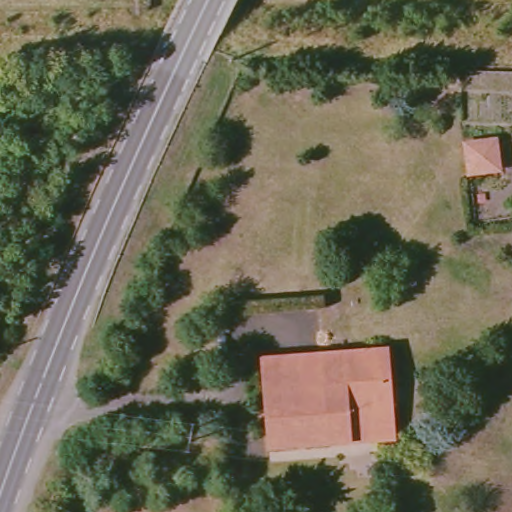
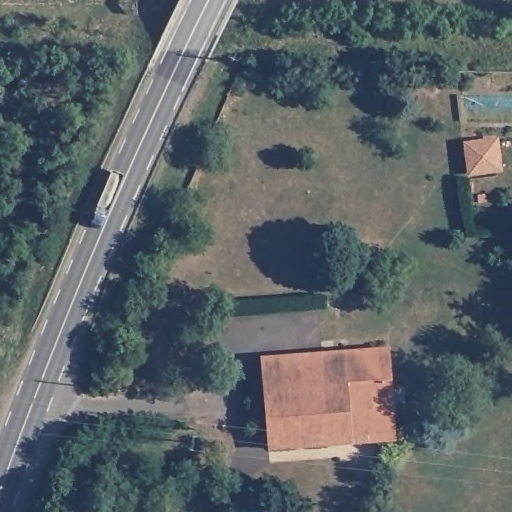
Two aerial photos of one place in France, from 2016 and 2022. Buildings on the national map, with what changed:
unchanged [(456,139),(495,137),(500,172),(459,176),(456,139)]
unchanged [(383,350),(388,440),(266,448),(259,357),(383,350)]

